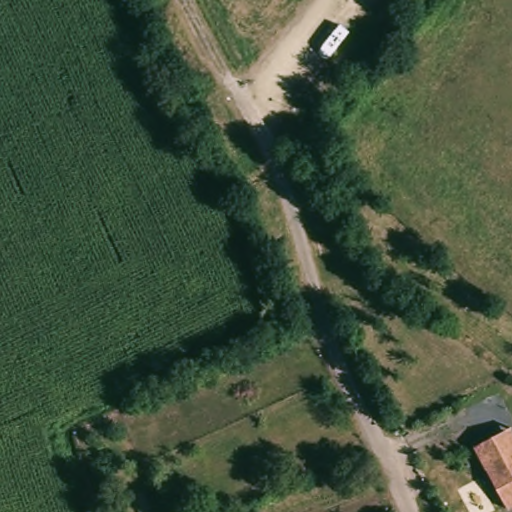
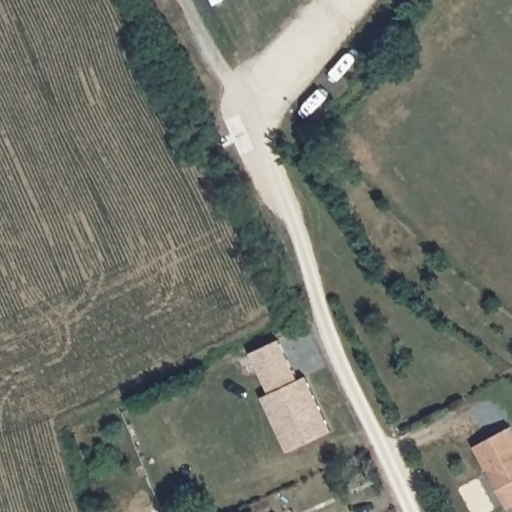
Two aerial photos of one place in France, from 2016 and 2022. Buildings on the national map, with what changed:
new [(262,398),(270,395),(250,353),(281,340),(299,381),(307,377),(333,432),(287,452),(262,398)]
unchanged [(512,443),(512,509),(512,510),(468,453),(484,441),(500,428),(512,443)]

